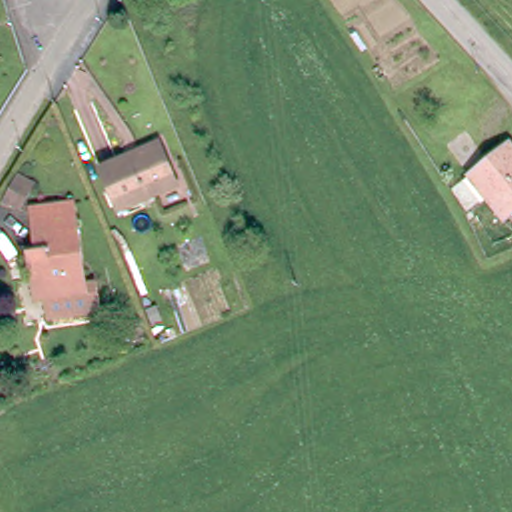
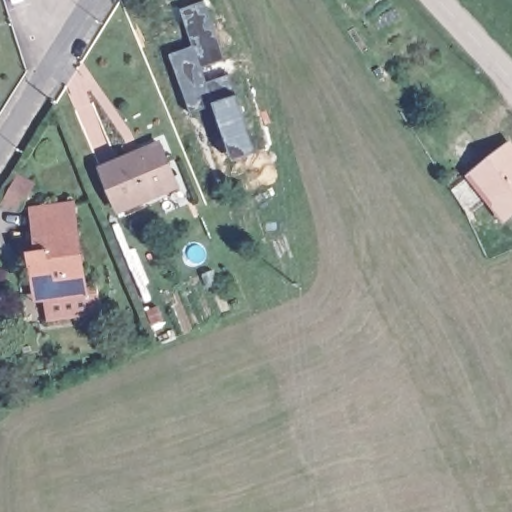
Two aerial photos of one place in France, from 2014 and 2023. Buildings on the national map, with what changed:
new [(190,114),(170,55),(193,47),(181,7),(205,0),(226,60),(203,68),(208,82),(230,74),(236,96),(257,153),(233,161),(213,104),(190,114)]
unchanged [(103,162),(161,137),(169,157),(179,179),(173,182),(120,204),(103,162)]
unchanged [(512,212),(501,222),(464,175),(504,144),(512,153),(512,212)]
unchanged [(0,207),(0,187),(5,179),(20,187),(6,210),(0,207)]
unchanged [(23,270),(21,255),(20,242),(29,241),(23,196),(65,190),(76,272),(88,271),(91,296),(85,303),(38,309),(36,290),(26,291),(23,270)]

